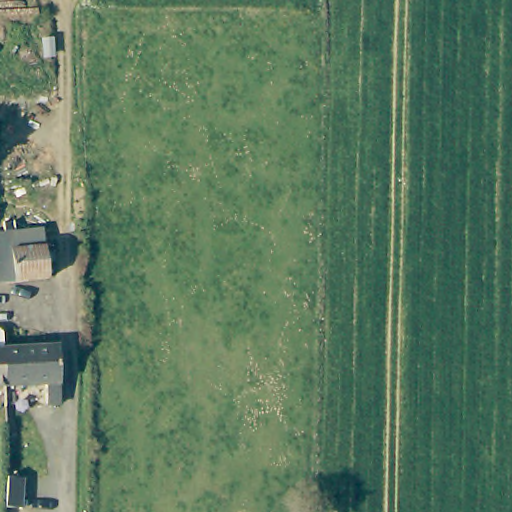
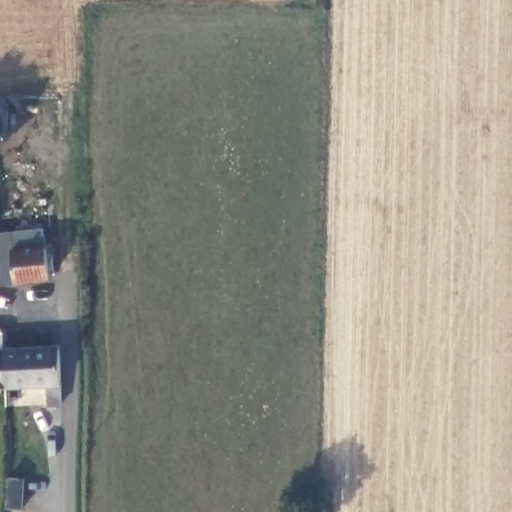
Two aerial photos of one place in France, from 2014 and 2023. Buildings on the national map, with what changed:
unchanged [(17,244),(52,242),(55,274),(0,278),(0,230),(16,229),(17,244)]
unchanged [(0,388),(0,329),(6,329),(6,349),(11,349),(13,387),(0,388)]
unchanged [(67,409),(54,410),(52,385),(13,387),(11,349),(66,347),(67,409)]
unchanged [(22,481),(22,512),(6,511),(7,481),(22,481)]

